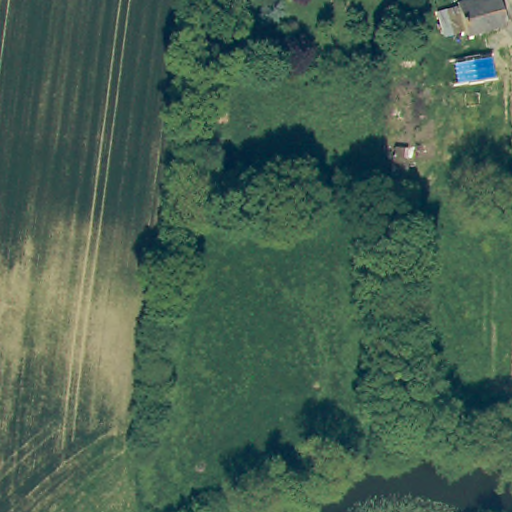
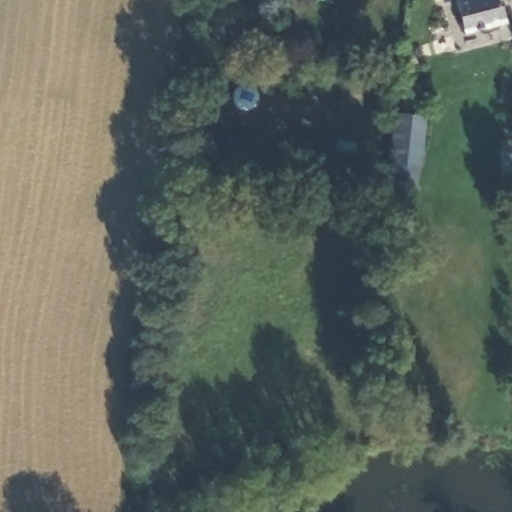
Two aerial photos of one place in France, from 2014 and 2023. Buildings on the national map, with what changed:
new [(454,0),(471,0),(455,4),(454,0)]
unchanged [(455,4),(471,0),(499,0),(507,25),(462,36),(461,32),(455,4)]
new [(421,171),(387,168),(394,116),(426,120),(421,171)]

